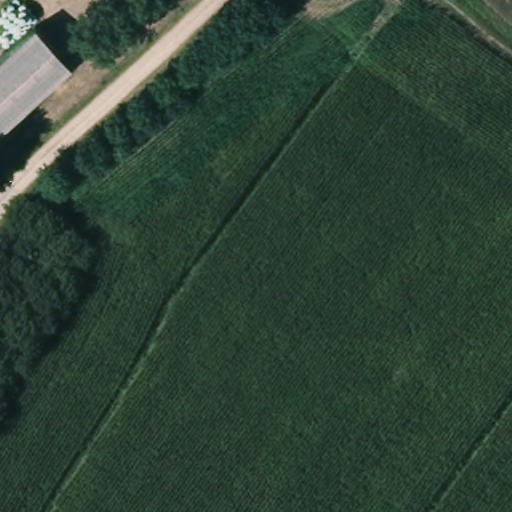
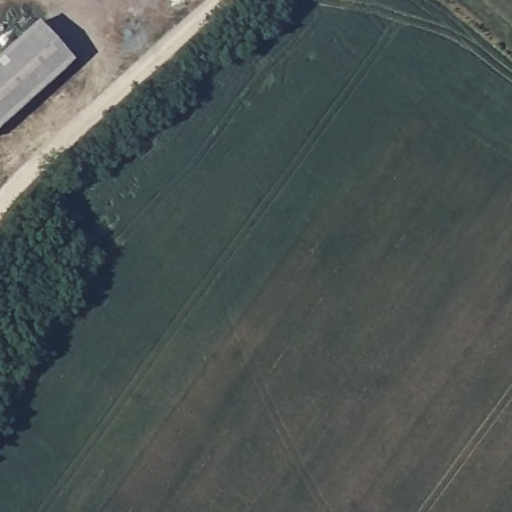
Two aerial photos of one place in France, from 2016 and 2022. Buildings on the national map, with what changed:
unchanged [(37,23),(72,65),(0,128),(0,56),(37,23)]

